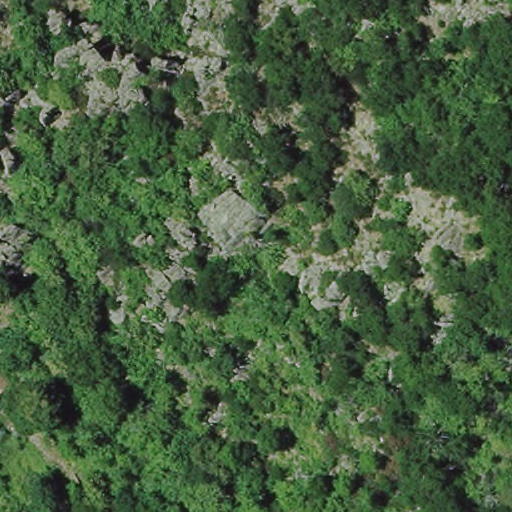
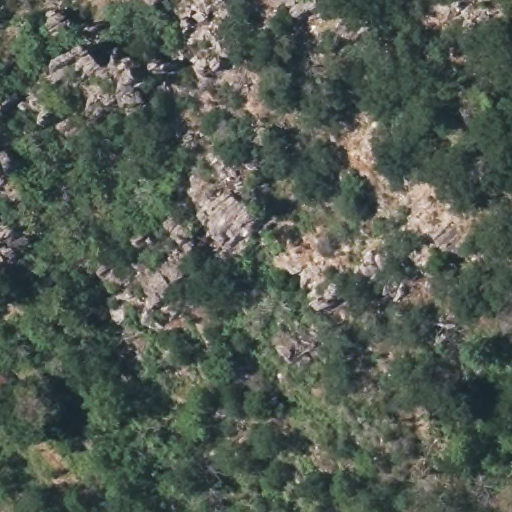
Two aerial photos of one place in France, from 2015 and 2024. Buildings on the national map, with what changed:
unchanged [(0,370),(10,381),(0,390),(0,370)]

